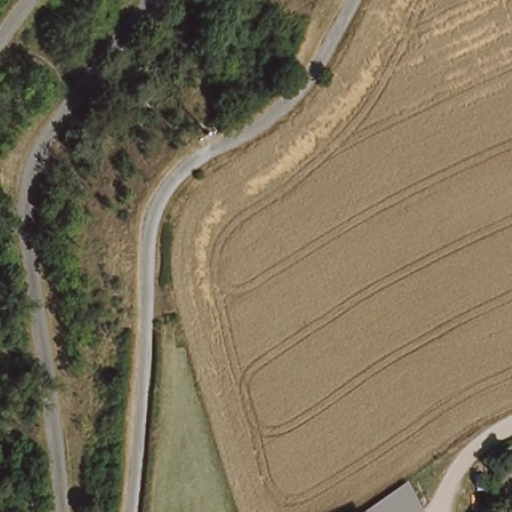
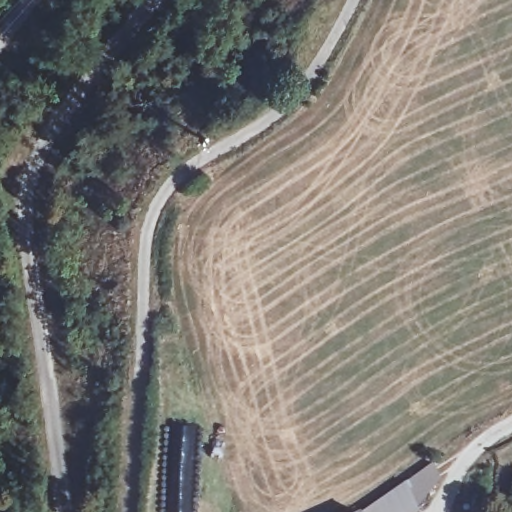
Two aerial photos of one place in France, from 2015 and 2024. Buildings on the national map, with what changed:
unchanged [(360,508),(412,479),(421,512),(362,512),(362,511),(360,508)]
unchanged [(362,512),(360,512),(362,511),(362,512)]

